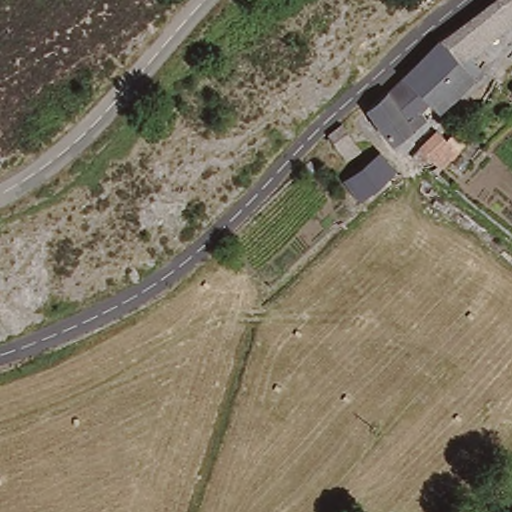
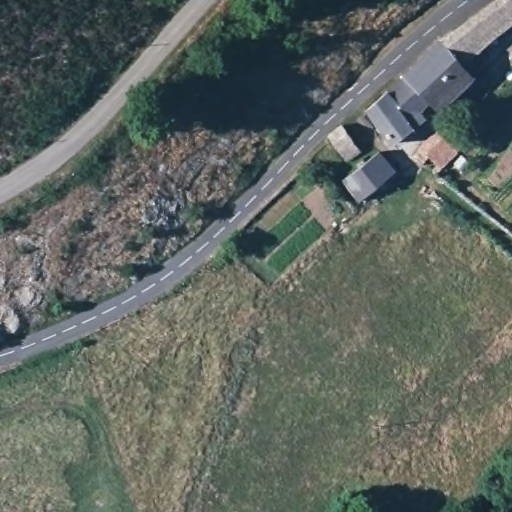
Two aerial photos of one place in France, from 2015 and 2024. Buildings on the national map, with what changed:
unchanged [(470,69),(482,77),(391,152),(364,111),(440,42),(497,0),(512,0),(512,30),(470,69)]
unchanged [(435,172),(417,155),(448,129),(466,144),(435,172)]
unchanged [(393,170),(350,202),(339,182),(380,154),(393,170)]

